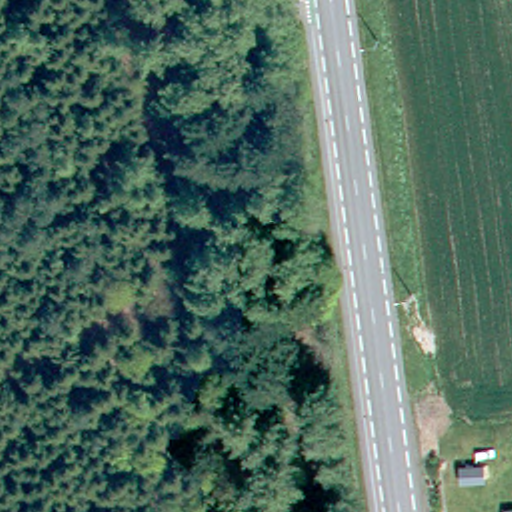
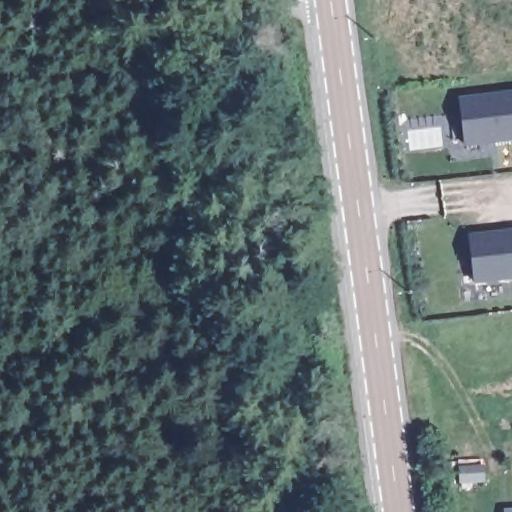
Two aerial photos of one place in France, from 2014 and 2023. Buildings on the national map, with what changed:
new [(512,90),(512,141),(465,146),(459,96),(512,90)]
new [(512,228),(512,279),(474,284),(469,233),(512,228)]
unchanged [(512,510),(512,512),(507,512),(507,511),(512,510)]

